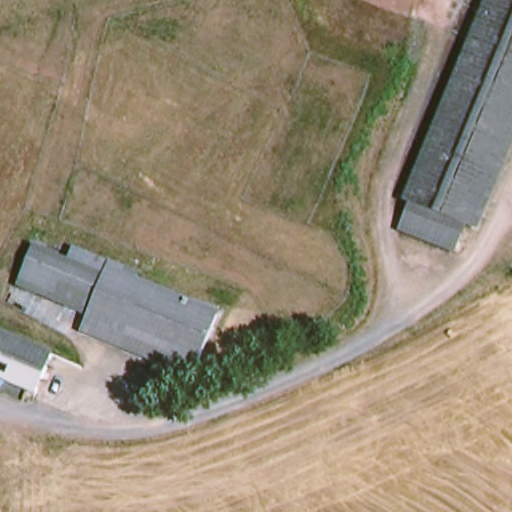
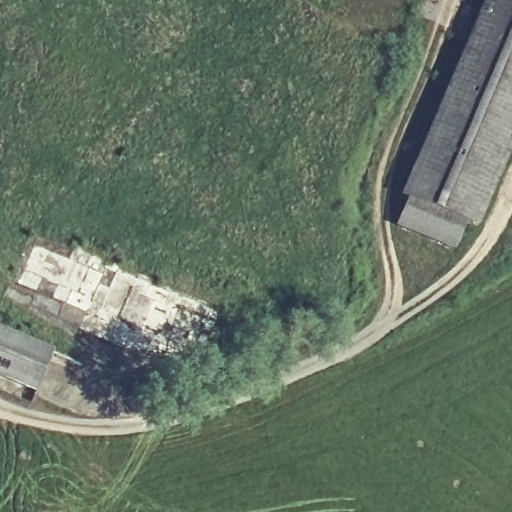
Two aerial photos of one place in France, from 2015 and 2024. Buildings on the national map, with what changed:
unchanged [(409,221),(420,196),(414,192),(495,0),(512,0),(512,150),(483,219),(473,222),(463,245),(409,221)]
demolished [(62,299),(67,285),(51,277),(44,292),(30,286),(46,247),(82,261),(86,250),(119,262),(117,267),(229,310),(211,357),(102,315),(62,299)]
unchanged [(54,342),(41,376),(0,360),(0,321),(54,342)]

